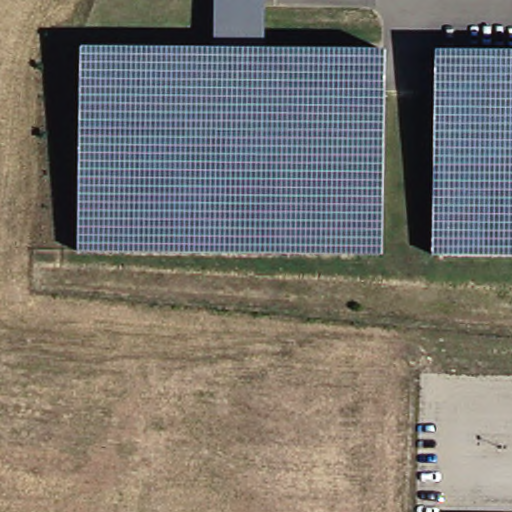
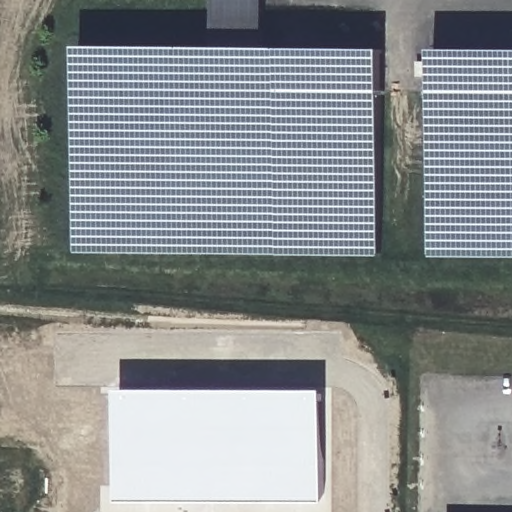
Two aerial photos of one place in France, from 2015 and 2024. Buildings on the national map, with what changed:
unchanged [(262,49),(214,48),(214,0),(263,0),(262,49)]
unchanged [(381,253),(76,250),(78,47),(214,48),(262,49),(383,50),(383,91),(381,253)]
unchanged [(512,254),(431,253),(433,50),(512,51),(512,254)]
new [(118,390),(326,390),(326,502),(119,501),(118,390)]

